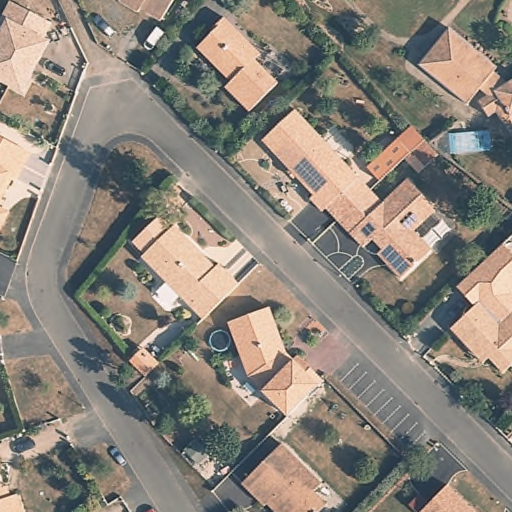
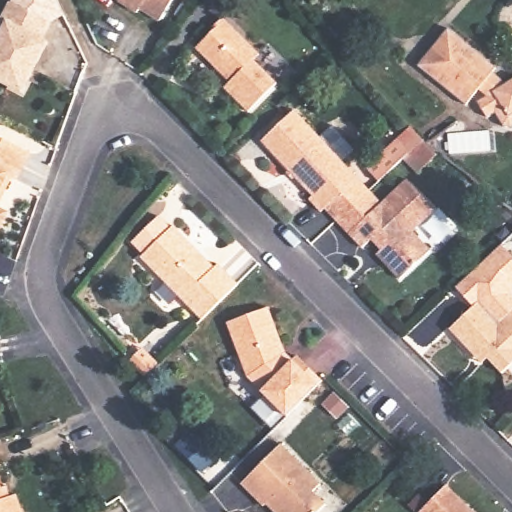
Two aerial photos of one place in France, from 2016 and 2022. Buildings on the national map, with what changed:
unchanged [(55,19),(46,36),(53,41),(26,87),(0,72),(0,43),(12,21),(7,18),(20,0),(25,0),(55,19)]
unchanged [(163,22),(145,11),(143,15),(124,2),(124,0),(176,0),(163,22)]
unchanged [(228,9),(266,48),(259,55),(282,78),(253,106),(230,80),(232,77),(202,42),(217,29),(212,25),(228,9)]
unchanged [(484,91),(477,85),(464,99),(414,59),(445,23),(494,63),(488,71),(498,79),(484,91)]
unchanged [(503,83),(512,78),(512,121),(505,121),(495,106),(485,113),(475,99),(484,91),(498,79),(503,83)]
unchanged [(361,174),(357,177),(325,206),(310,189),(314,185),(269,134),(301,107),(361,174)]
unchanged [(35,146),(19,176),(10,173),(0,194),(0,128),(35,146)]
unchanged [(424,130),(442,145),(432,155),(428,159),(412,145),(416,141),(424,130)]
unchanged [(422,225),(439,245),(407,274),(387,252),(390,249),(376,234),(366,243),(355,229),(382,205),(415,176),(442,206),(422,225)]
unchanged [(382,205),(381,206),(355,229),(366,243),(361,248),(325,206),(354,180),(357,177),(382,205)]
unchanged [(13,208),(2,230),(0,229),(0,201),(13,208)]
unchanged [(151,254),(182,222),(225,266),(228,262),(245,281),(210,315),(151,254)]
unchanged [(512,288),(509,290),(512,293),(512,306),(502,314),(486,297),(474,308),(455,287),(501,243),(512,255),(512,288)]
unchanged [(488,346),(482,352),(458,324),(474,308),(486,297),(502,314),(512,306),(512,364),(508,367),(488,346)]
unchanged [(291,410),(251,370),(236,314),(277,304),(287,344),(297,353),(301,350),(326,374),(291,410)]
unchanged [(133,362),(143,354),(147,350),(162,367),(158,371),(148,381),(133,362)]
unchanged [(317,483),(334,499),(320,512),(288,512),(277,500),(274,503),(248,475),(290,437),(327,474),(317,483)]
unchanged [(3,459),(15,492),(30,489),(37,512),(0,512),(0,438),(1,438),(9,456),(3,459)]
unchanged [(483,512),(433,512),(426,504),(450,480),(483,512)]

